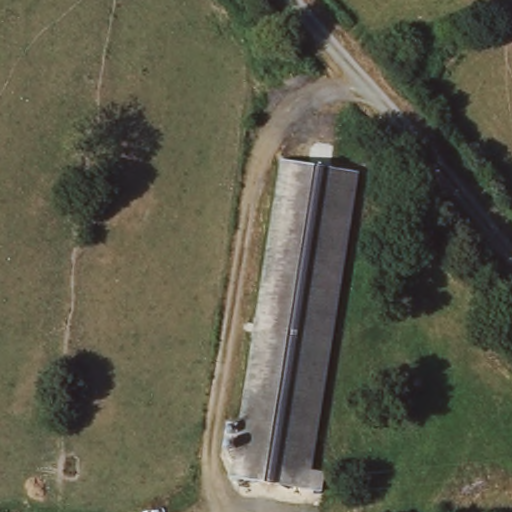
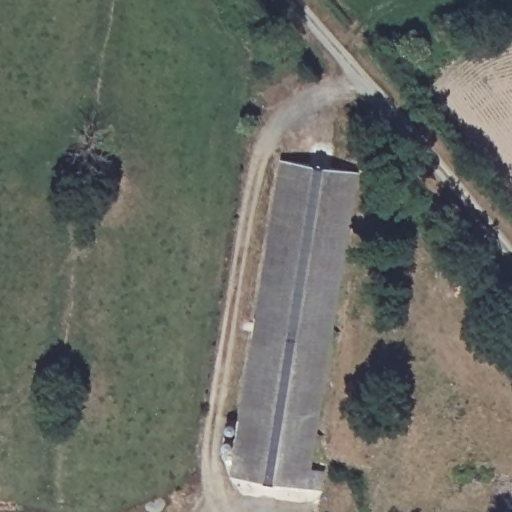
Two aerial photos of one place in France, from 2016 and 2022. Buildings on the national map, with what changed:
unchanged [(310,474),(310,475),(319,476),(321,477),(318,497),(315,496),(292,493),(229,483),(261,256),(275,166),(276,166),(348,176),(351,177),(354,177),(310,474)]

